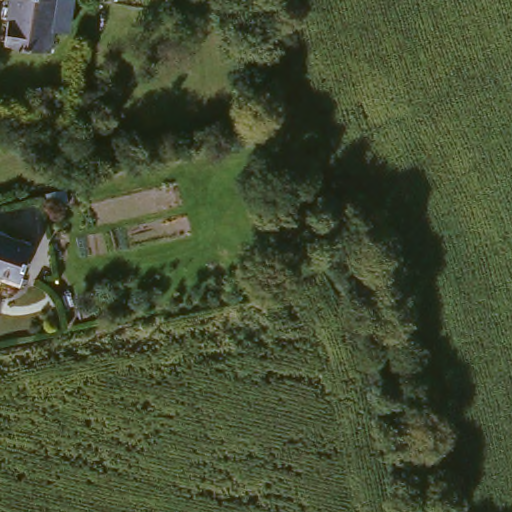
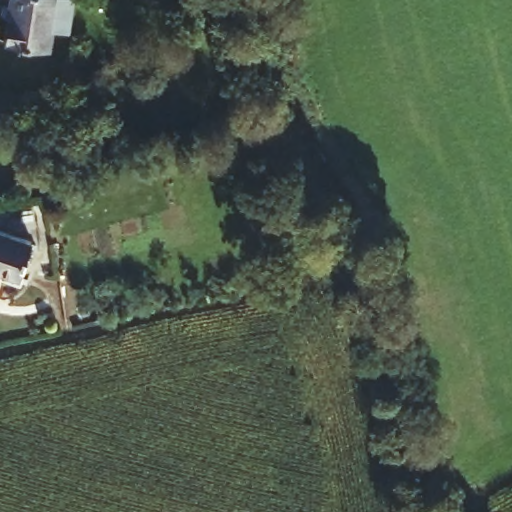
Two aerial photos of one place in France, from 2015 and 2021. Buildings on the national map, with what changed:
unchanged [(12,0),(75,0),(73,23),(54,20),(52,42),(6,35),(12,0)]
unchanged [(17,278),(0,272),(0,231),(30,242),(17,278)]

